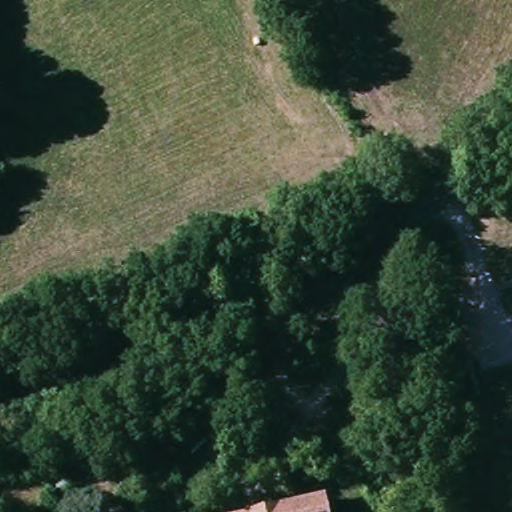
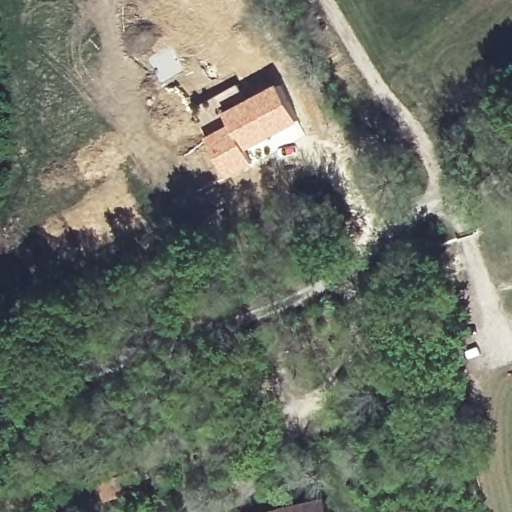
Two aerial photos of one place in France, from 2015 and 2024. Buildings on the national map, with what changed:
new [(238,82),(246,99),(222,115),(202,126),(192,107),(238,82)]
new [(227,123),(222,115),(246,99),(277,83),(300,124),(249,152),(256,164),(227,179),(206,136),(227,123)]
unchanged [(328,512),(252,512),(320,490),(328,512)]

